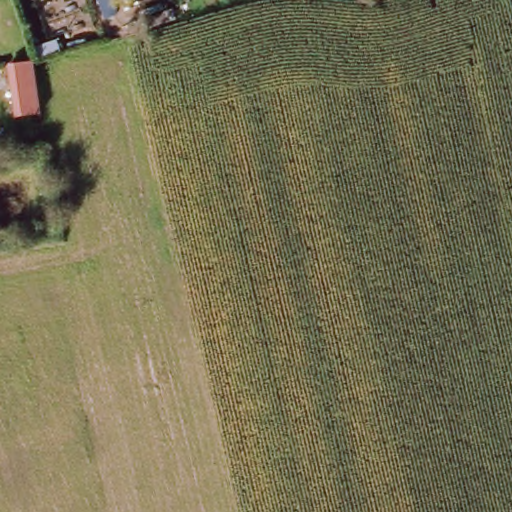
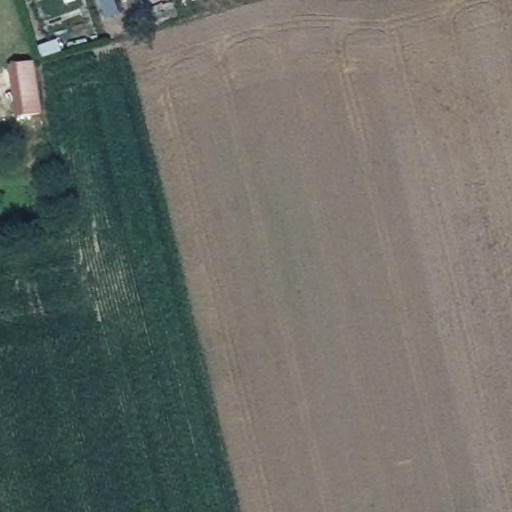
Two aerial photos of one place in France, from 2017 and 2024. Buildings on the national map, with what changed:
unchanged [(100,0),(112,0),(114,8),(104,12),(100,0)]
unchanged [(31,54),(55,47),(58,57),(33,64),(31,54)]
unchanged [(32,64),(40,113),(15,118),(8,68),(28,64),(32,64)]

